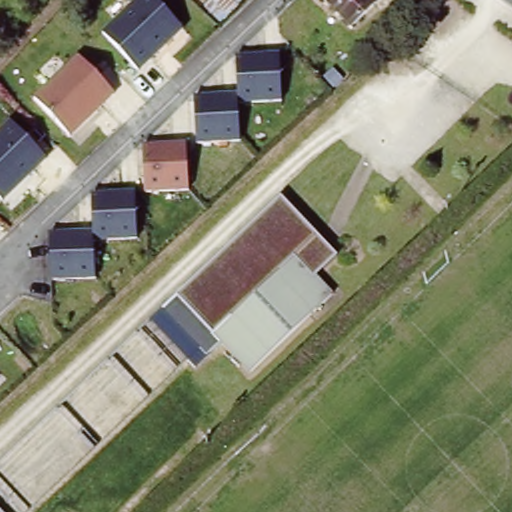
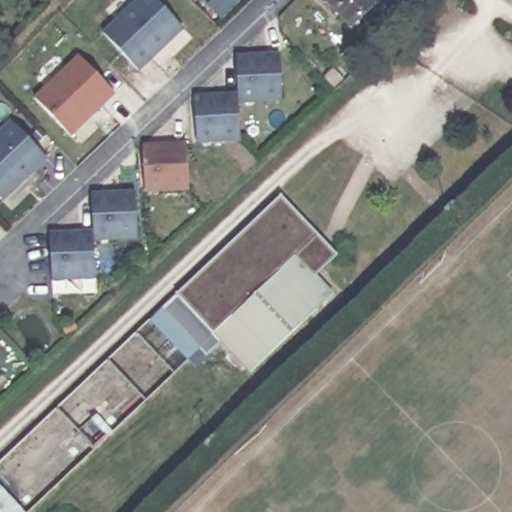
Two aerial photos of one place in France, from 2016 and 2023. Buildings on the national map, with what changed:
unchanged [(140,73),(102,31),(134,0),(157,0),(185,29),(140,73)]
unchanged [(350,24),(327,0),(374,0),(375,1),(350,24)]
unchanged [(116,93),(71,135),(33,96),(76,53),(116,93)]
unchanged [(278,55),(281,99),(239,102),(241,141),(196,144),(192,94),(237,93),(235,56),(278,55)]
unchanged [(50,159),(0,206),(0,127),(7,119),(50,159)]
unchanged [(186,144),(187,192),(143,194),(141,146),(186,144)]
unchanged [(136,192),(140,240),(95,241),(97,278),(55,279),(51,232),(93,230),(91,193),(136,192)]
unchanged [(291,257),(210,335),(218,344),(204,354),(163,310),(280,196),(335,255),(311,278),(291,257)]
unchanged [(245,373),(210,335),(291,257),(326,294),(245,373)]

